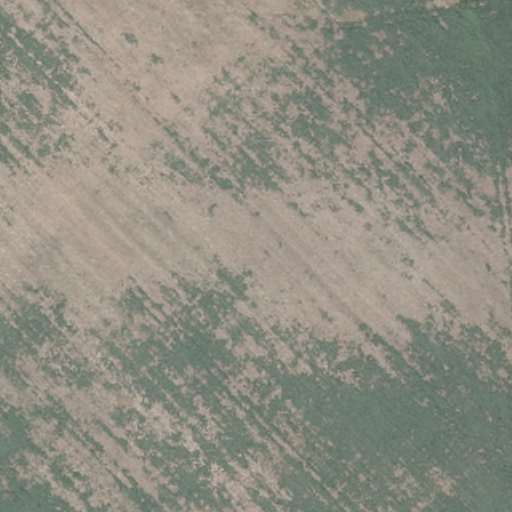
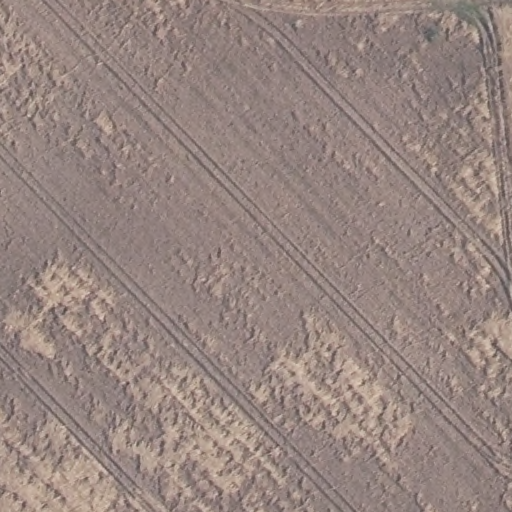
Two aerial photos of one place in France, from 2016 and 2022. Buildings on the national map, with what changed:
[]

